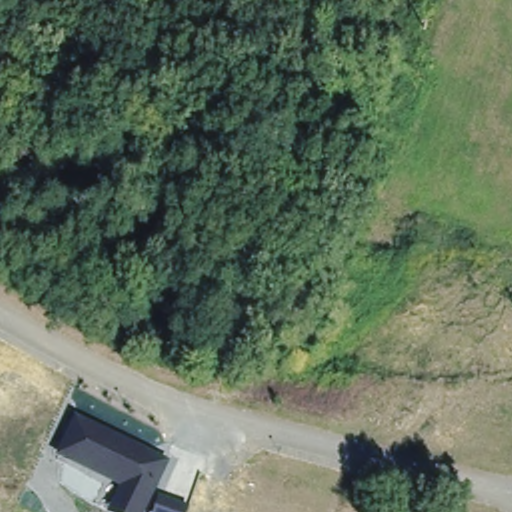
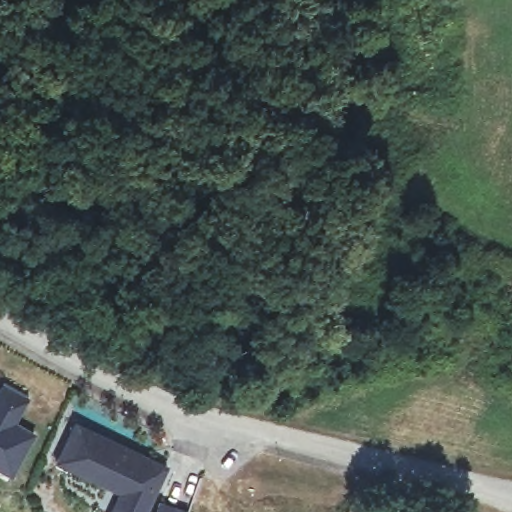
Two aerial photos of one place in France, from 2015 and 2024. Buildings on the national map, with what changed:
new [(29,397),(18,421),(37,433),(11,475),(0,468),(0,384),(1,382),(29,397)]
unchanged [(56,461),(75,419),(169,465),(147,512),(109,512),(118,491),(56,461)]
unchanged [(188,509),(187,512),(153,512),(158,499),(188,509)]

